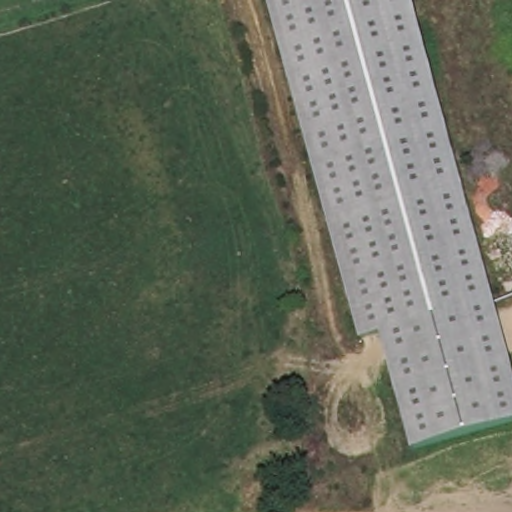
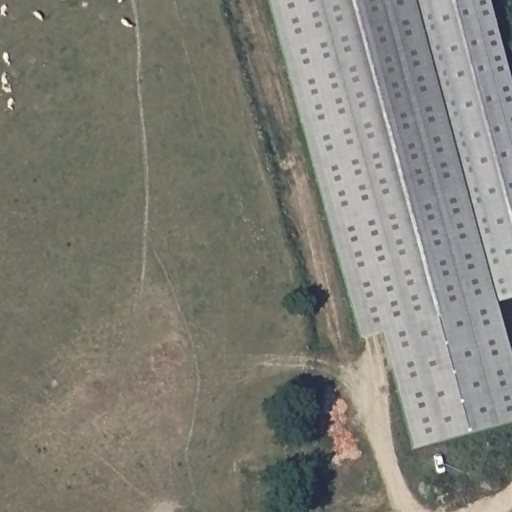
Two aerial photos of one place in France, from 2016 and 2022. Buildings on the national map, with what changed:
unchanged [(385,333),(361,340),(271,0),(412,0),(512,361),(512,428),(417,452),(385,333)]
new [(413,0),(484,0),(512,102),(512,297),(496,301),(413,0)]

